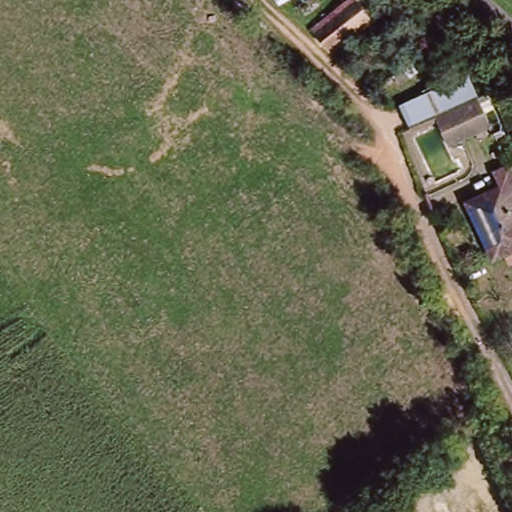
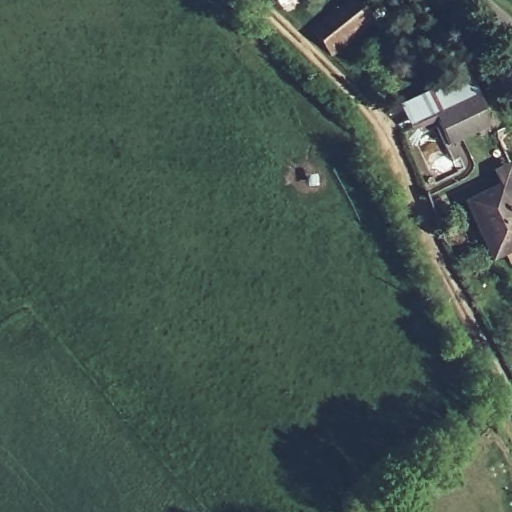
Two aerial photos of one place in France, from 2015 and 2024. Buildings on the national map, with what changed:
unchanged [(285,3),(282,0),(290,0),(285,3)]
unchanged [(376,14),(335,54),(315,34),(351,0),(363,0),(376,14)]
unchanged [(470,74),(492,119),(450,143),(436,121),(410,132),(399,106),(425,94),(470,74)]
unchanged [(470,201),(504,185),(497,169),(512,164),(512,255),(499,261),(470,201)]

